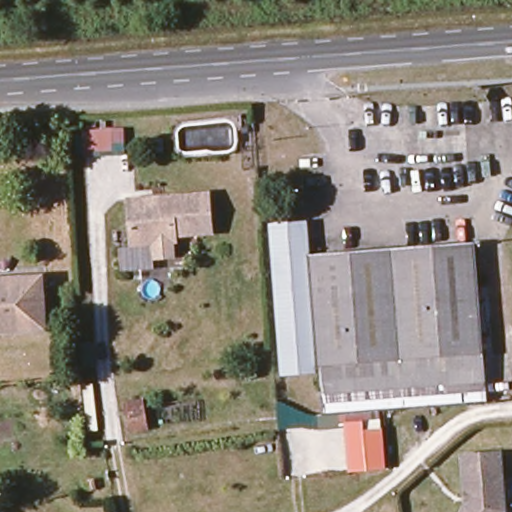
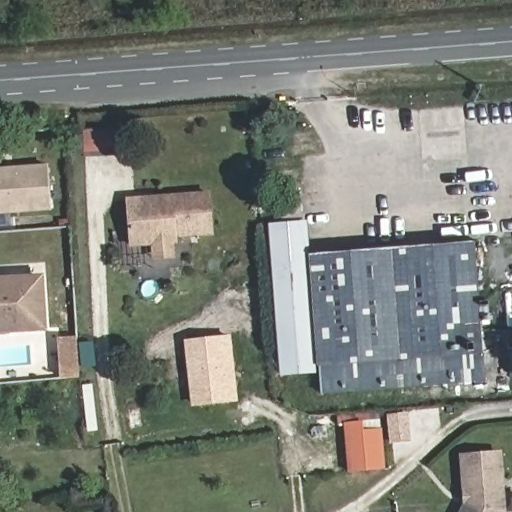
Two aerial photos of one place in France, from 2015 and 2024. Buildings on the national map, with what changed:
new [(0,166),(48,163),(52,212),(0,215),(0,166)]
unchanged [(161,193),(207,190),(211,230),(179,232),(180,238),(167,239),(135,242),(131,196),(161,193)]
unchanged [(315,369),(281,371),(272,222),(302,221),(305,253),(473,242),(480,371),(316,380),(315,369)]
unchanged [(42,328),(0,331),(0,281),(36,278),(42,328)]
new [(80,378),(60,380),(57,337),(77,335),(78,343),(92,342),(94,367),(80,368),(80,378)]
new [(231,335),(238,402),(192,407),(184,340),(231,335)]
unchanged [(317,402),(316,380),(480,371),(482,392),(317,402)]
unchanged [(347,468),(345,421),(362,420),(363,428),(380,427),(382,467),(347,468)]
unchanged [(502,512),(460,512),(463,507),(461,460),(499,458),(502,512)]

